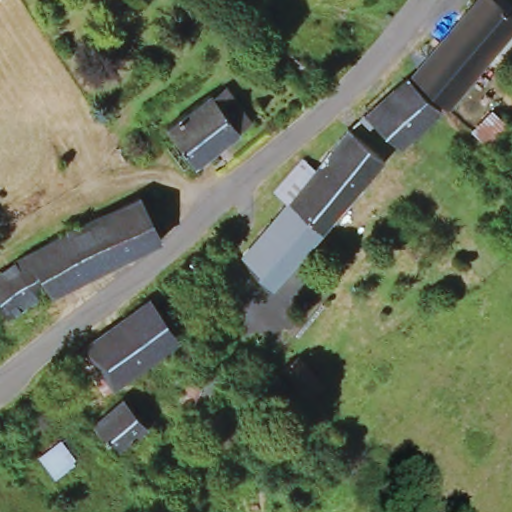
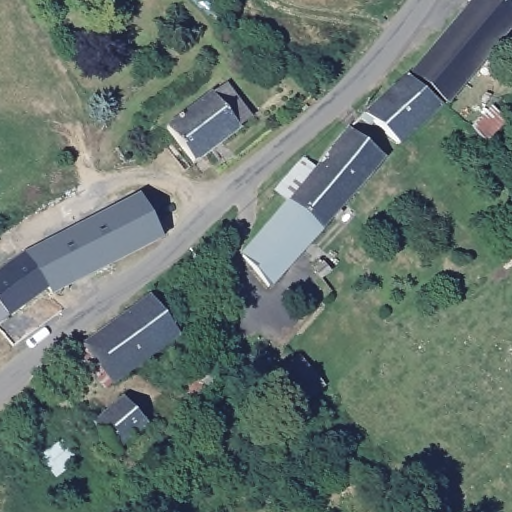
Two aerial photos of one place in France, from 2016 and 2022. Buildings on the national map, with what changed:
unchanged [(415,74),(460,15),(472,0),(496,0),(512,8),(512,23),(453,102),(415,74)]
unchanged [(349,128),(411,73),(444,104),(394,152),(275,288),(242,254),(349,128)]
unchanged [(162,131),(206,99),(222,86),(249,122),(233,134),(190,167),(162,131)]
unchanged [(500,105),(512,114),(512,118),(499,136),(485,126),(500,105)]
unchanged [(42,294),(0,323),(0,274),(25,255),(134,201),(157,244),(47,302),(42,294)]
unchanged [(187,338),(112,389),(95,363),(80,377),(72,370),(70,366),(84,349),(94,341),(161,297),(187,338)]
unchanged [(322,391),(305,405),(281,376),(297,362),(322,391)]
unchanged [(131,399),(152,429),(122,450),(101,419),(131,399)]

